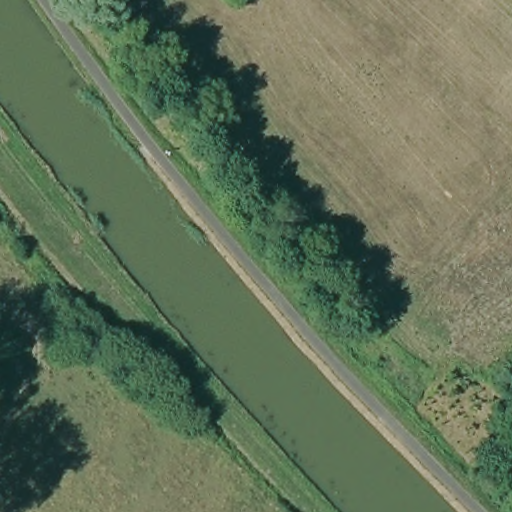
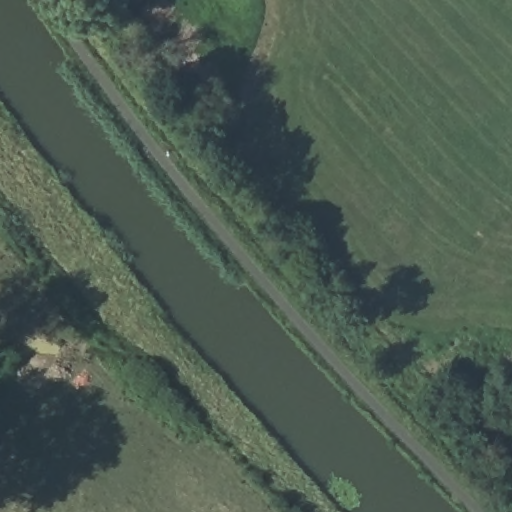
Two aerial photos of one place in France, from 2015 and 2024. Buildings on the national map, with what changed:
[]

